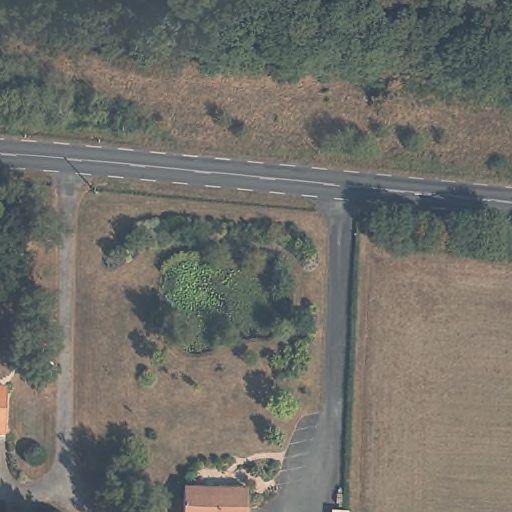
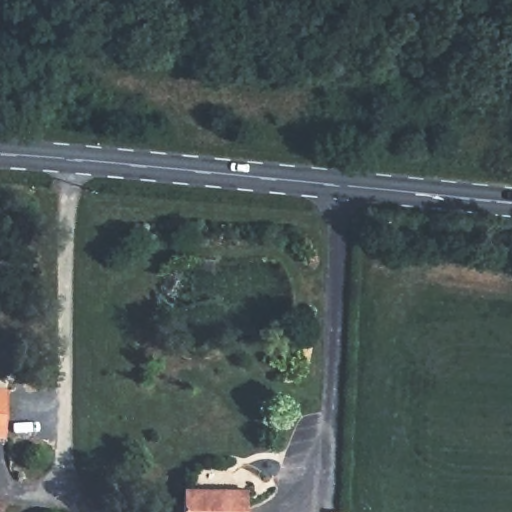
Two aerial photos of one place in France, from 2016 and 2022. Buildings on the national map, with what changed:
unchanged [(0,436),(0,388),(4,388),(2,436),(0,436)]
unchanged [(244,492),(244,512),(181,512),(181,492),(244,492)]

